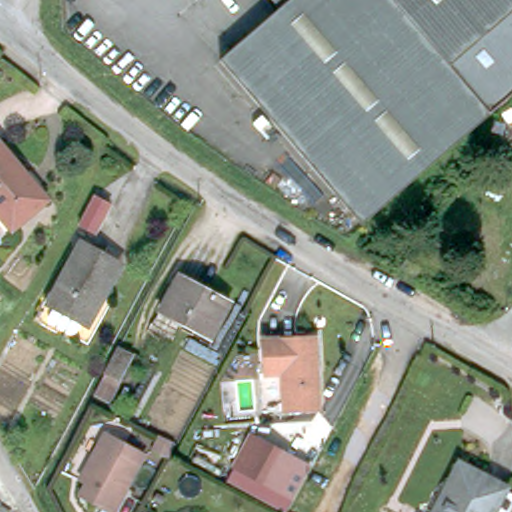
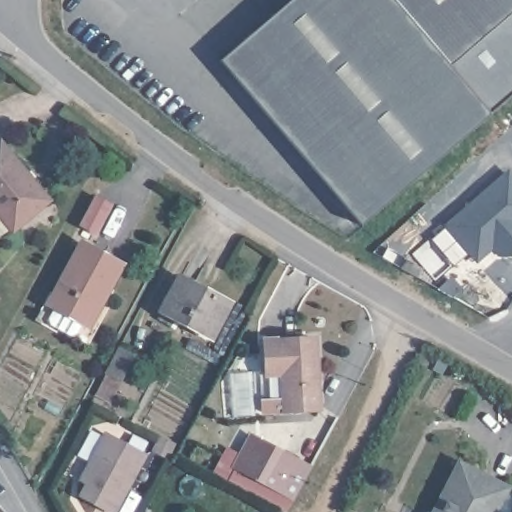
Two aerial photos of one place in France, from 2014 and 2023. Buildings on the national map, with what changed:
unchanged [(245,40),(291,0),(512,0),(512,95),(386,202),(245,40)]
unchanged [(0,216),(0,144),(2,143),(30,177),(27,180),(46,204),(12,231),(0,216)]
new [(510,257),(497,257),(492,251),(476,264),(444,225),(507,170),(512,175),(512,255),(510,257)]
unchanged [(98,192),(113,200),(98,229),(82,220),(98,192)]
unchanged [(85,242),(123,263),(88,326),(50,305),(85,242)]
unchanged [(403,270),(407,261),(423,270),(419,278),(403,270)]
unchanged [(183,275),(231,301),(210,340),(162,313),(183,275)]
unchanged [(268,344),(320,342),(323,412),(289,413),(287,375),(269,375),(268,344)]
unchanged [(135,355),(122,379),(107,370),(120,346),(135,355)]
unchanged [(83,481),(88,471),(92,463),(109,432),(150,455),(118,512),(112,512),(84,497),(90,485),(83,481)]
unchanged [(300,458),(283,495),(230,470),(248,433),(300,458)]
unchanged [(463,465),(508,488),(495,512),(437,512),(463,465)]

